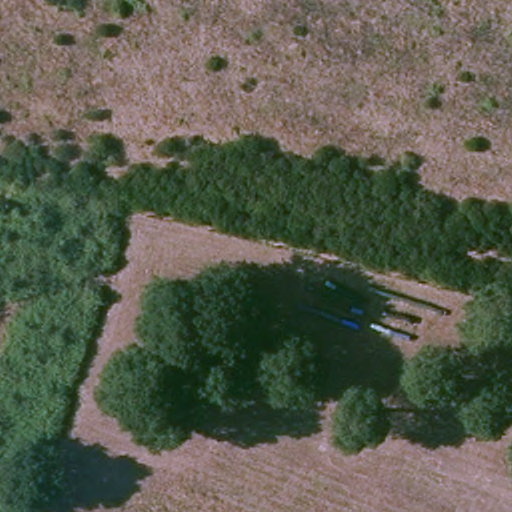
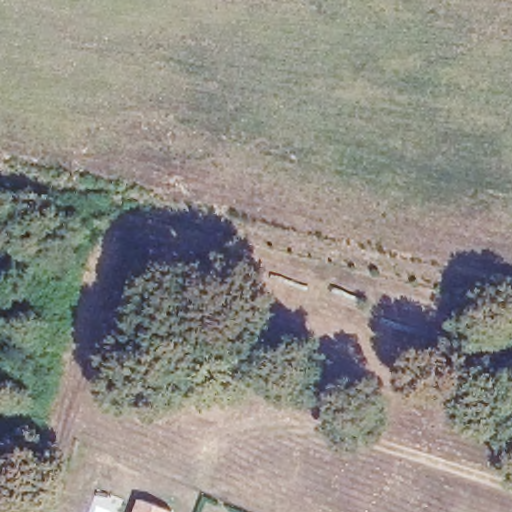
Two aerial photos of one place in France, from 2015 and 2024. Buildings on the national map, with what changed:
new [(173,512),(134,512),(139,499),(173,512)]

